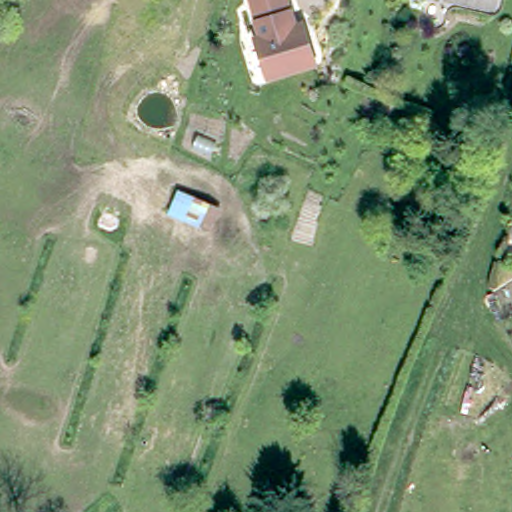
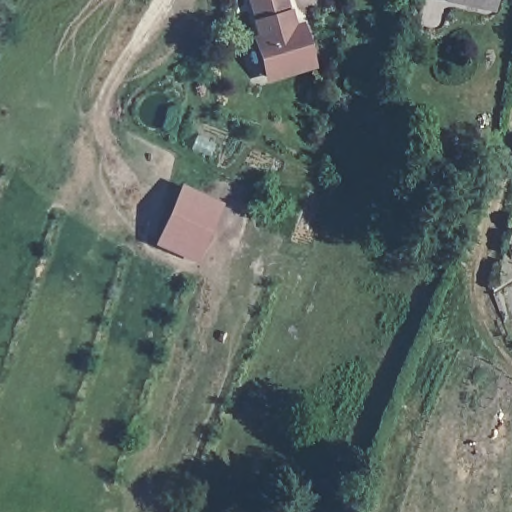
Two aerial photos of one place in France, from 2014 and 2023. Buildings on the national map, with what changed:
unchanged [(302,27),(314,66),(270,79),(259,41),(264,40),(253,0),(286,0),(295,30),(302,27)]
unchanged [(459,0),(499,0),(497,9),(459,0)]
new [(155,243),(166,210),(176,190),(192,197),(215,207),(205,227),(195,260),(155,243)]
demolished [(192,197),(215,207),(205,227),(182,217),(192,197)]

